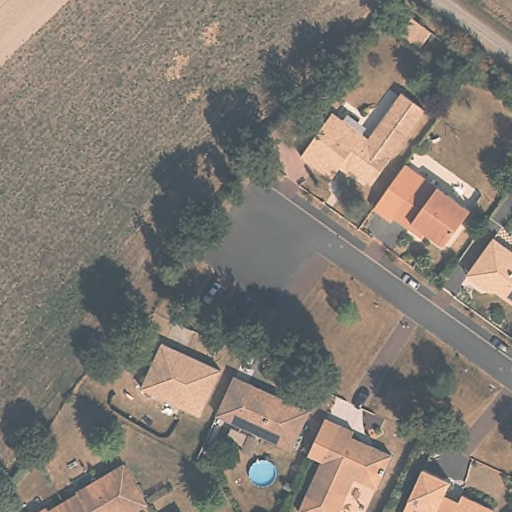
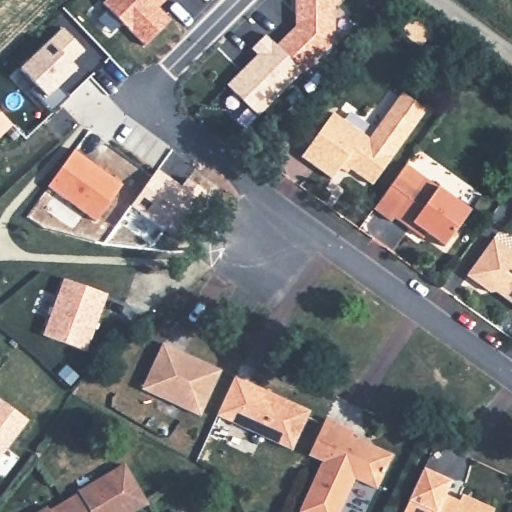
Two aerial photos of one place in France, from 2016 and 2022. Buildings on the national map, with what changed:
new [(167,19),(144,44),(102,1),(104,0),(163,0),(156,8),(167,19)]
new [(250,48),(265,33),(276,44),(295,26),(294,0),(339,0),(334,5),(332,44),(258,116),(226,84),(257,55),(250,48)]
unchanged [(418,21),(427,28),(431,31),(432,32),(420,48),(400,33),(412,17),(418,21)]
new [(48,40),(61,26),(82,49),(74,64),(76,69),(59,85),(68,96),(53,111),(32,90),(38,87),(19,68),(48,40)]
unchanged [(343,168),(332,183),(301,161),(333,117),(369,144),(402,98),(426,115),(372,189),(343,168)]
new [(13,125),(0,137),(0,112),(13,125)]
new [(74,150),(120,182),(94,219),(46,186),(74,150)]
new [(156,170),(179,186),(185,178),(213,197),(182,242),(131,205),(156,170)]
unchanged [(403,190),(415,174),(480,220),(455,256),(423,234),(420,238),(404,227),(401,231),(383,218),(403,190)]
unchanged [(490,292),(473,280),(472,274),(469,272),(493,238),(512,252),(512,303),(496,291),(490,292)]
new [(62,278),(106,294),(87,349),(42,333),(62,278)]
unchanged [(142,389),(163,343),(221,370),(200,416),(142,389)]
unchanged [(309,416),(292,454),(217,420),(231,390),(235,381),(309,416)]
new [(0,458),(0,399),(28,421),(0,458)]
unchanged [(376,492),(354,482),(341,512),(332,512),(306,500),(339,428),(354,435),(350,445),(364,451),(369,449),(391,459),(376,492)]
unchanged [(140,512),(56,512),(78,499),(77,497),(123,470),(146,508),(140,512)]
unchanged [(450,486),(442,504),(456,511),(462,500),(488,512),(405,512),(423,474),(450,486)]

